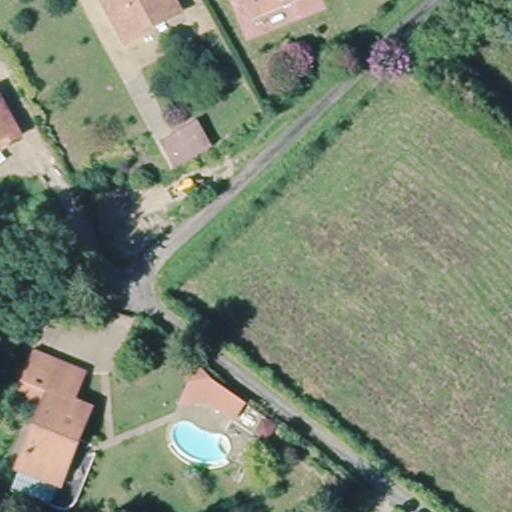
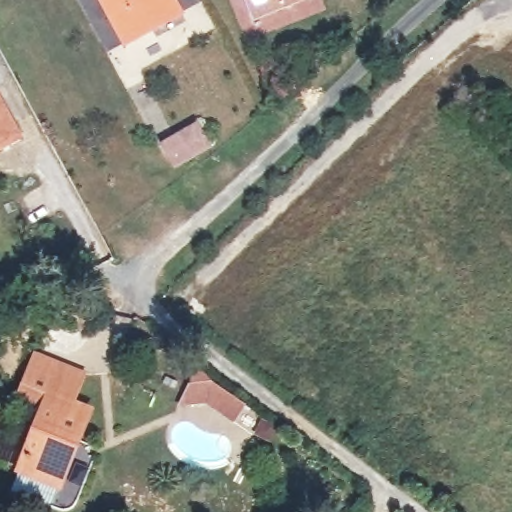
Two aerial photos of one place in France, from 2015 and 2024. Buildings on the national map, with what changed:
unchanged [(179,15),(125,45),(101,0),(171,0),(179,15)]
unchanged [(251,16),(242,0),(283,0),(251,16)]
unchanged [(15,135),(3,142),(0,137),(0,108),(15,135)]
unchanged [(200,129),(213,152),(179,171),(166,146),(200,129)]
unchanged [(19,399),(32,357),(82,372),(73,402),(92,408),(87,426),(81,424),(68,462),(72,462),(66,482),(25,468),(46,408),(19,399)]
unchanged [(247,403),(234,423),(206,404),(179,404),(198,367),(247,403)]

